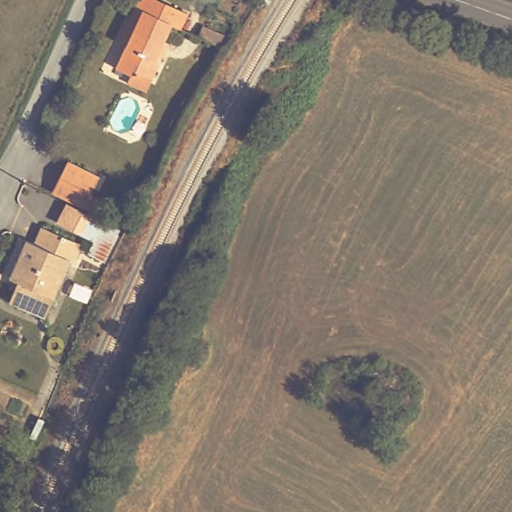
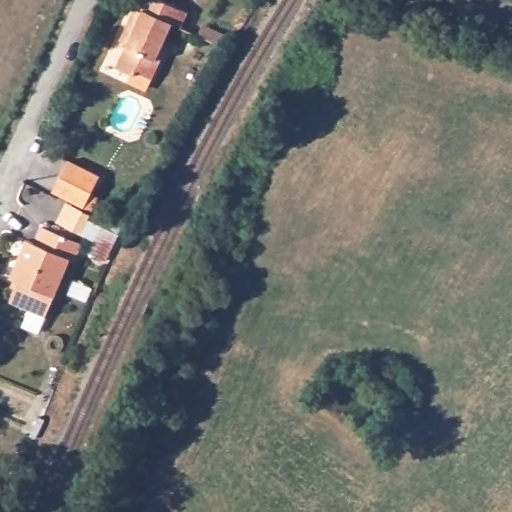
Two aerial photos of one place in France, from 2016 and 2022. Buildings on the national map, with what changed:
unchanged [(193,12),(185,25),(174,19),(160,49),(164,51),(153,73),(140,64),(133,72),(115,61),(139,23),(130,17),(139,0),(173,0),(193,12)]
unchanged [(77,153),(108,167),(94,199),(62,185),(77,153)]
unchanged [(12,272),(29,235),(37,239),(45,224),(84,242),(77,258),(70,255),(48,311),(12,297),(21,275),(12,272)]

